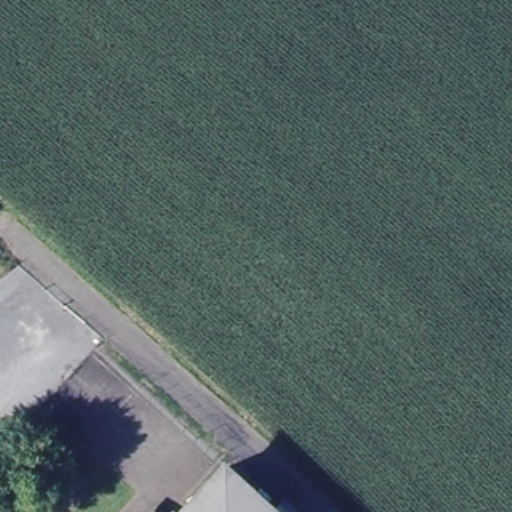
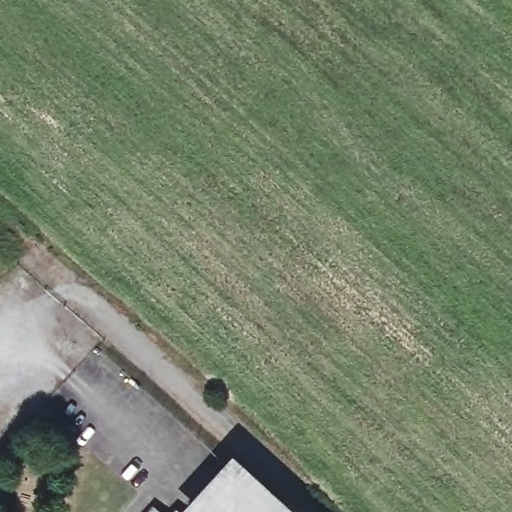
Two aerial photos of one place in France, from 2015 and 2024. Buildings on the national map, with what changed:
unchanged [(267,507),(277,498),(291,512),(180,512),(220,466),(267,507)]
unchanged [(153,510),(155,512),(151,512),(153,510)]

